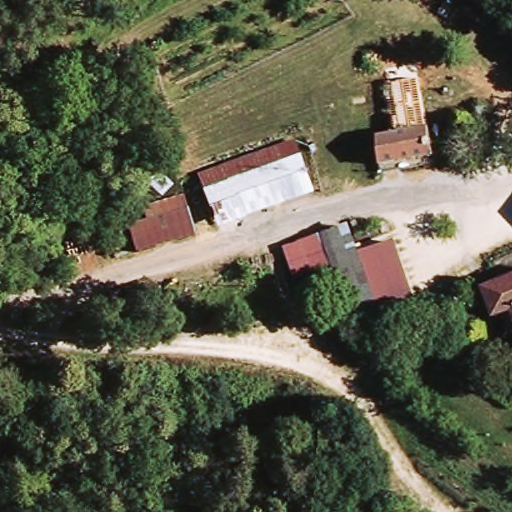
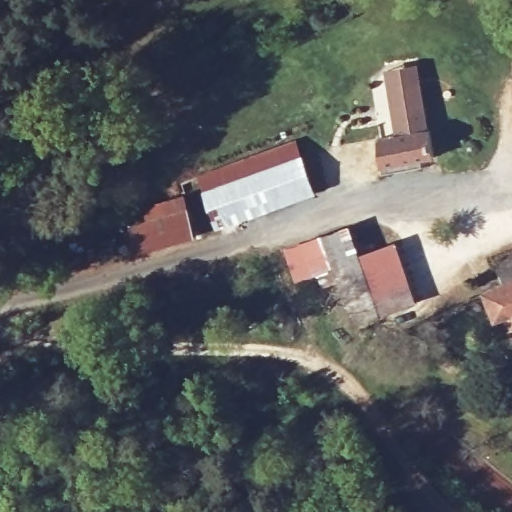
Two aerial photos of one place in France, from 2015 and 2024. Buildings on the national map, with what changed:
new [(431,131),(424,132),(397,136),(385,70),(418,64),(431,131)]
unchanged [(373,140),(424,132),(428,160),(377,167),(373,140)]
unchanged [(200,166),(295,144),(307,192),(212,216),(200,166)]
unchanged [(133,250),(125,215),(170,202),(187,197),(197,234),(175,240),(133,250)]
unchanged [(347,224),(357,250),(393,241),(415,300),(376,313),(347,320),(328,265),(320,269),(325,281),(315,284),(308,273),(288,277),(280,246),(347,224)]
unchanged [(508,320),(505,314),(493,317),(482,285),(495,280),(487,260),(512,251),(512,318),(508,320)]

